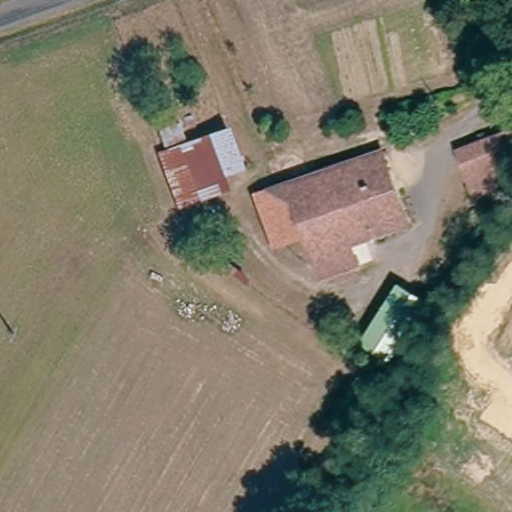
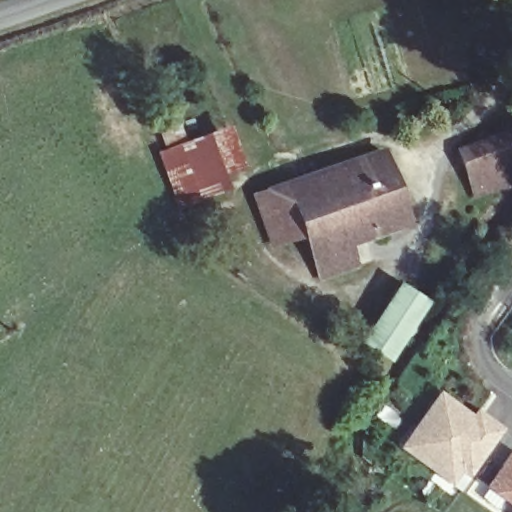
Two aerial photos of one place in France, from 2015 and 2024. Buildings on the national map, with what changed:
unchanged [(175,144),(167,121),(183,115),(191,139),(229,126),(239,156),(243,166),(225,172),(230,188),(188,202),(176,175),(166,147),(175,144)]
unchanged [(512,146),(512,164),(504,167),(508,181),(463,196),(447,154),(507,132),(512,146)]
unchanged [(290,210),(259,220),(251,197),(376,153),(400,224),(342,244),(350,267),(313,278),(300,241),(290,210)]
unchanged [(269,252),(259,220),(290,210),(300,241),(269,252)]
unchanged [(389,365),(356,345),(398,280),(430,301),(389,365)]
new [(469,476),(461,471),(451,485),(399,447),(439,390),(472,414),(477,408),(503,427),(469,476)]
new [(512,448),(512,505),(485,487),(512,448)]

